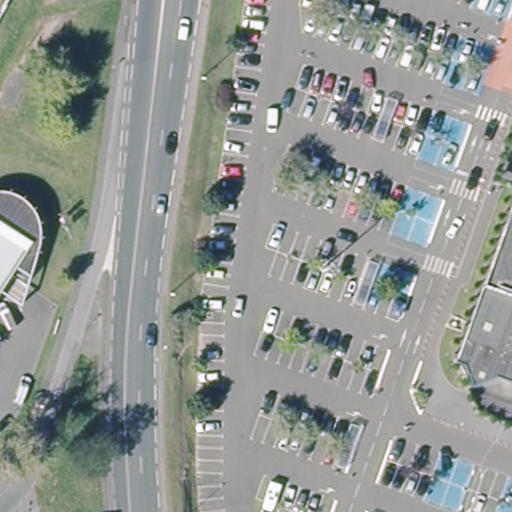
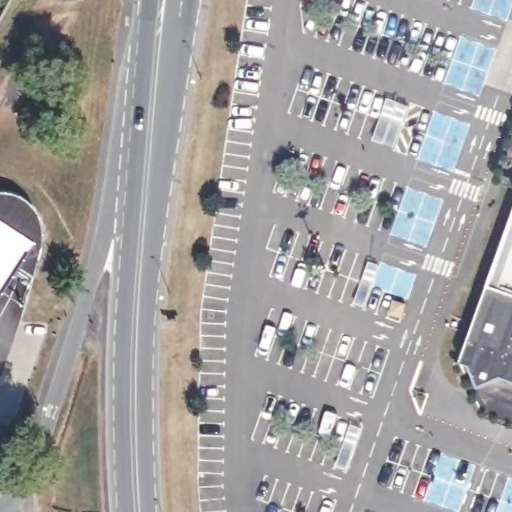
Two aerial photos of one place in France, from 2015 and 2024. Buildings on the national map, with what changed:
unchanged [(39,236),(37,242),(26,287),(9,276),(0,290),(0,193),(4,193),(10,194),(15,197),(20,200),(25,204),(29,208),(32,213),(35,218),(36,220),(37,225),(39,231),(39,236)]
unchanged [(482,401),(465,360),(456,357),(485,279),(512,205),(512,413),(482,401)]

